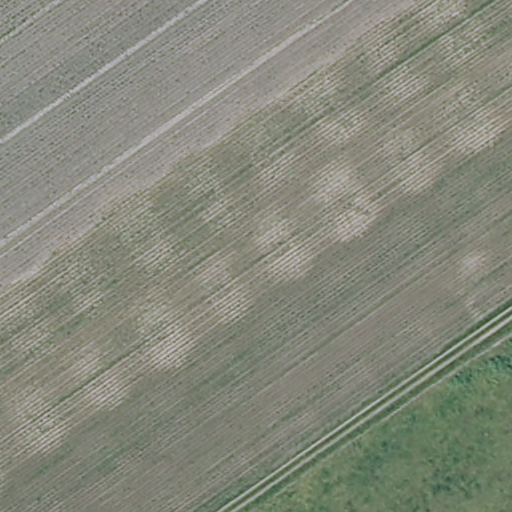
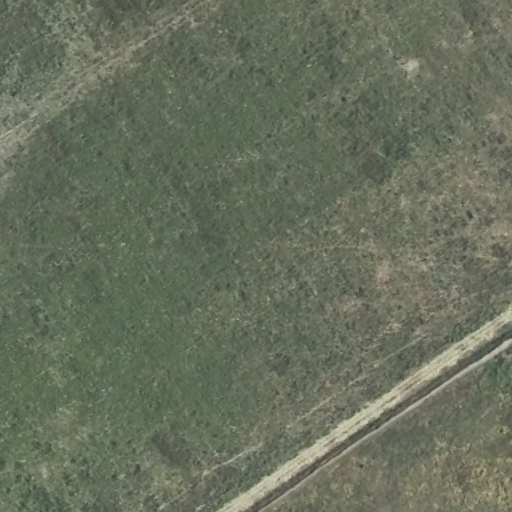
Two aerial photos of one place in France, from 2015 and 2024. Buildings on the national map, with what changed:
[]

